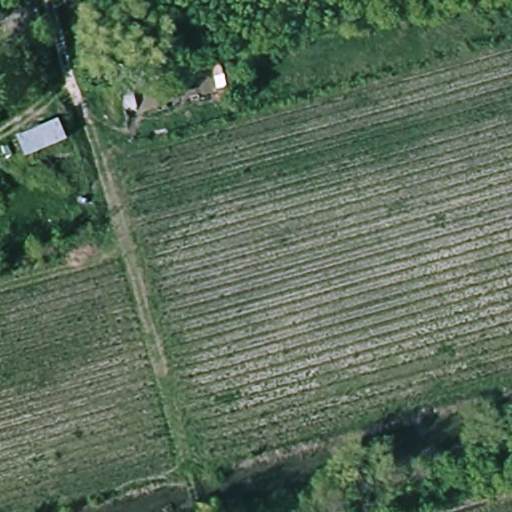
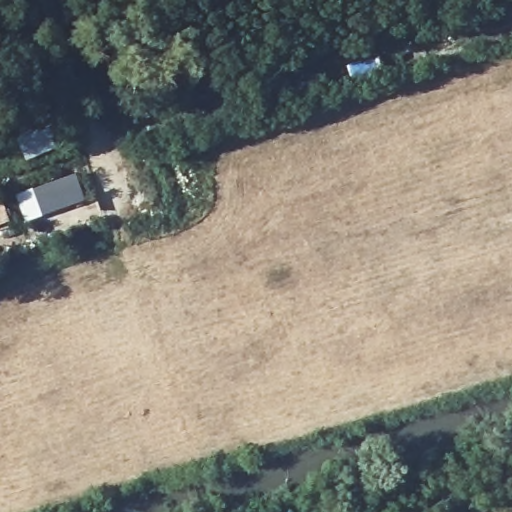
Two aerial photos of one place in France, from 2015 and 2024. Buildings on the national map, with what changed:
unchanged [(24,155),(17,127),(59,112),(66,140),(24,155)]
new [(42,213),(32,187),(76,172),(85,197),(42,213)]

